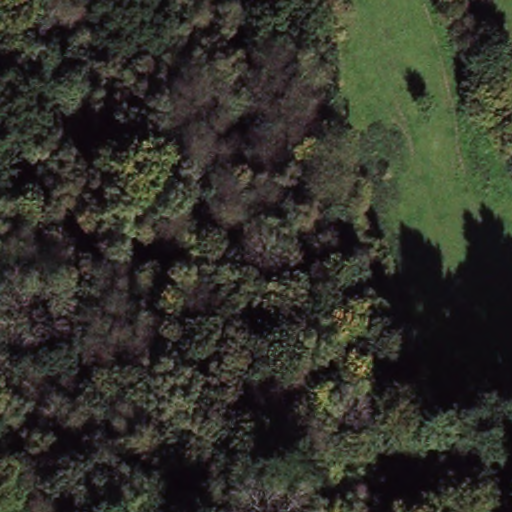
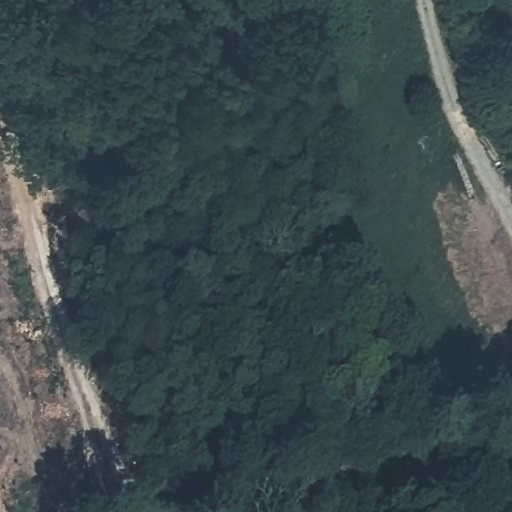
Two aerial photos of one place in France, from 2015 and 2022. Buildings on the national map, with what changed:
[]

